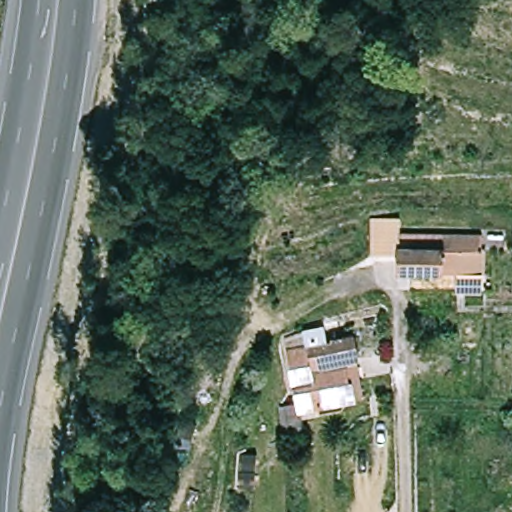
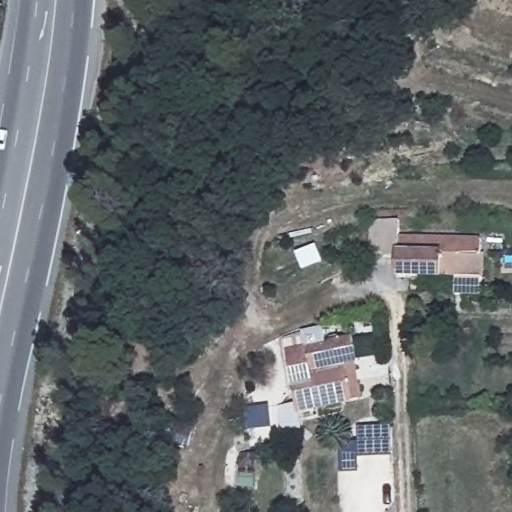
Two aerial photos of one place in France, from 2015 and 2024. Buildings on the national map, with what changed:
unchanged [(372,257),(374,218),(401,219),(401,240),(400,258),(372,257)]
unchanged [(455,294),(456,280),(401,280),(399,277),(400,258),(401,240),(496,243),(496,257),(484,257),(483,268),(482,281),(482,295),(455,294)]
unchanged [(360,405),(325,412),(302,417),(288,342),(308,335),(310,335),(312,348),(358,340),(363,366),(360,367),(367,403),(360,405)]

